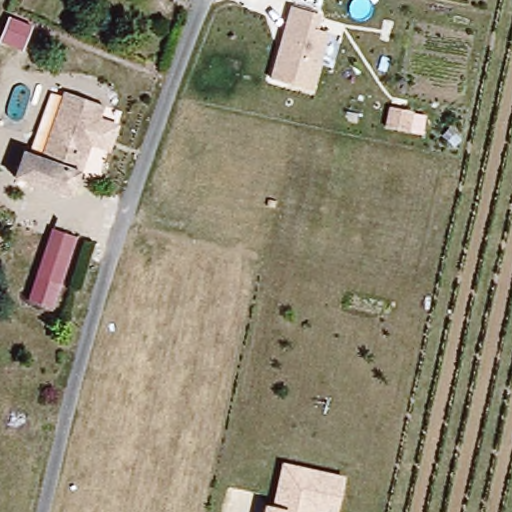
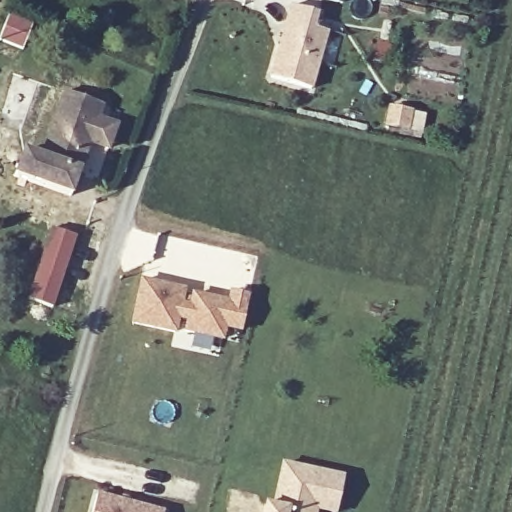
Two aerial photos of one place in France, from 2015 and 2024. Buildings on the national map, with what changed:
unchanged [(293,0),(325,0),(317,27),(330,32),(312,92),(269,80),(293,0)]
unchanged [(35,26),(25,52),(0,43),(0,33),(8,14),(35,26)]
unchanged [(39,154),(63,91),(106,106),(103,117),(124,125),(114,154),(93,147),(83,170),(73,201),(14,180),(23,148),(39,154)]
unchanged [(388,105),(427,112),(423,136),(384,129),(388,105)]
unchanged [(0,215),(0,212),(1,212),(0,215)]
unchanged [(51,227),(79,237),(55,308),(26,298),(51,227)]
new [(239,332),(237,332),(221,328),(218,342),(180,332),(183,321),(174,318),(170,334),(129,324),(137,282),(180,291),(178,306),(187,308),(189,297),(225,305),(228,292),(245,297),(247,297),(239,332)]
unchanged [(279,503),(289,461),(349,476),(340,511),(322,506),(320,512),(268,512),(270,502),(279,503)]
new [(165,512),(92,512),(97,493),(165,512)]

